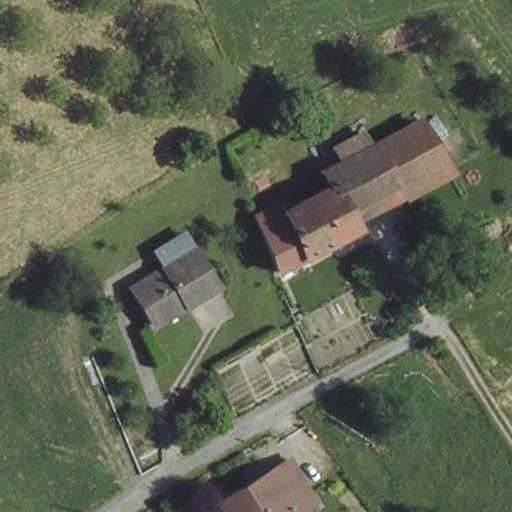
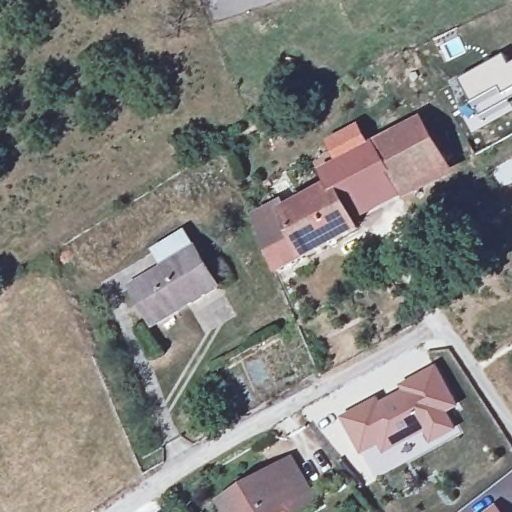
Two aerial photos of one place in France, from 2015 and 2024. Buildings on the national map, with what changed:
new [(471,104),(460,80),(503,56),(509,66),(512,64),(512,98),(480,116),(471,104)]
unchanged [(361,235),(280,276),(258,222),(287,210),(292,220),(300,216),(335,197),(325,180),(340,173),(341,172),(332,157),(363,141),(372,155),(375,154),(421,126),(449,171),(401,198),(397,192),(351,218),(361,235)]
unchanged [(223,291),(158,332),(134,293),(167,273),(155,255),(185,236),(195,255),(198,254),(223,291)]
new [(375,399),(377,404),(400,392),(398,387),(435,365),(463,408),(450,418),(455,426),(431,441),(425,431),(383,454),(380,447),(361,456),(340,417),(375,399)]
unchanged [(303,512),(228,512),(221,501),(270,475),(290,464),(293,470),(315,506),(303,512)]

